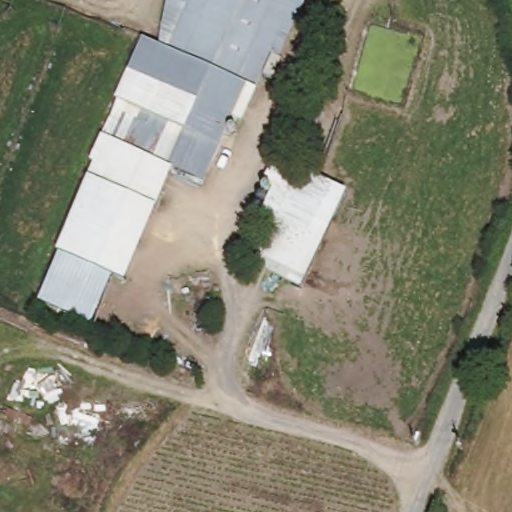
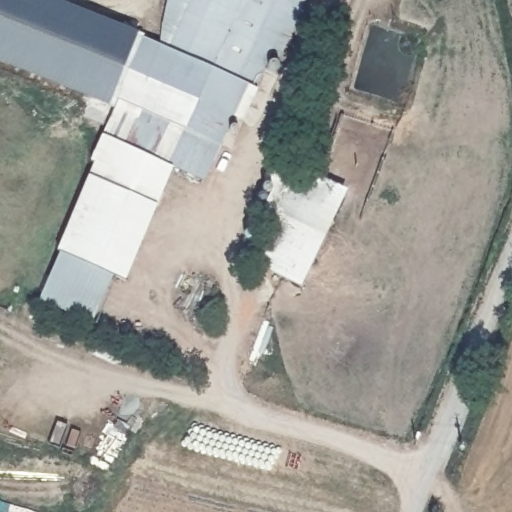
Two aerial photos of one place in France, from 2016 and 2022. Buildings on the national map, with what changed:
new [(0,58),(0,0),(53,0),(141,37),(110,97),(113,99),(111,104),(0,58)]
unchanged [(113,99),(110,97),(141,37),(157,45),(157,24),(161,3),(162,0),(302,0),(305,1),(271,78),(261,73),(254,92),(246,87),(202,183),(125,149),(113,175),(86,162),(113,99)]
unchanged [(113,175),(125,149),(170,169),(126,280),(113,275),(93,324),(39,301),(60,251),(56,249),(86,162),(113,175)]
unchanged [(276,159),(347,191),(302,287),(251,263),(258,244),(254,242),(274,183),(266,180),(276,159)]

